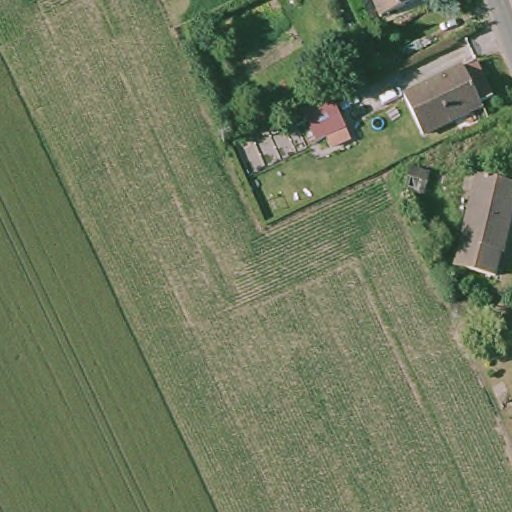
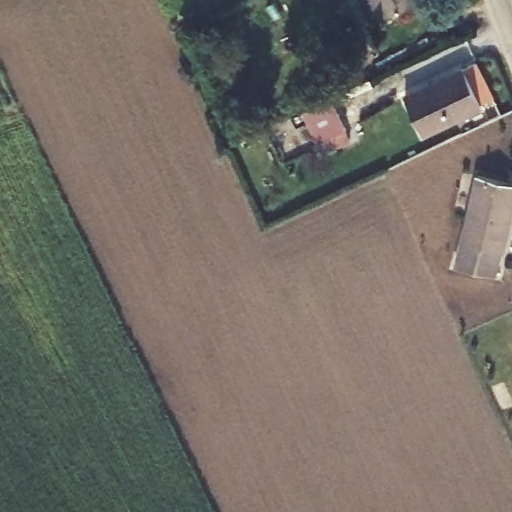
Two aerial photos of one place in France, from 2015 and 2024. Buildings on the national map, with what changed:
unchanged [(422,0),(383,21),(372,0),(422,0)]
unchanged [(488,97),(475,103),(477,109),(420,139),(400,100),(471,63),(488,97)]
unchanged [(305,119),(332,105),(347,137),(317,150),(304,119),(305,119)]
unchanged [(511,200),(500,279),(460,274),(472,178),(512,182),(512,200),(511,200)]

